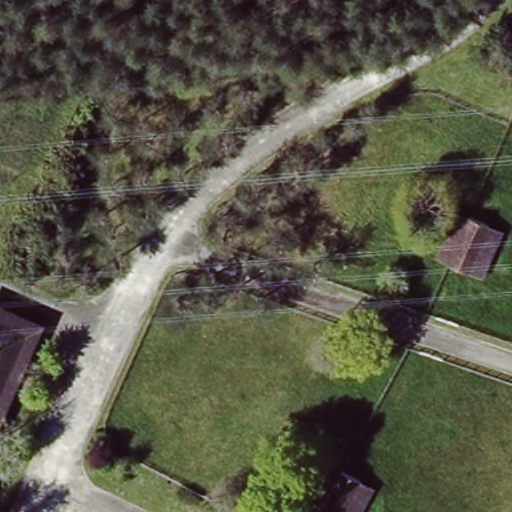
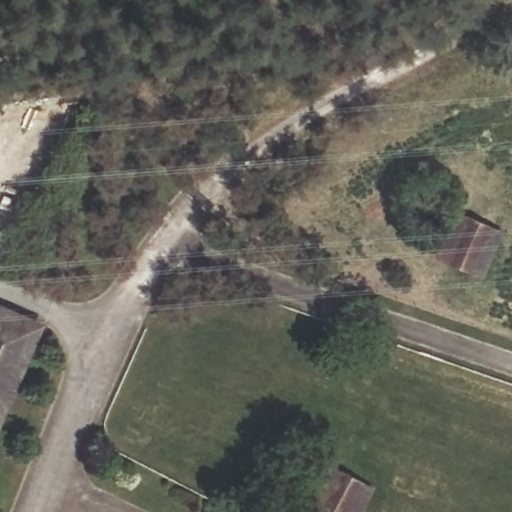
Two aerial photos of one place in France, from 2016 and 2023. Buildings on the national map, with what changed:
unchanged [(459,215),(471,221),(503,235),(483,280),(450,265),(438,259),(459,215)]
unchanged [(35,337),(0,426),(0,323),(35,337)]
unchanged [(312,512),(334,468),(379,491),(370,512),(312,512)]

